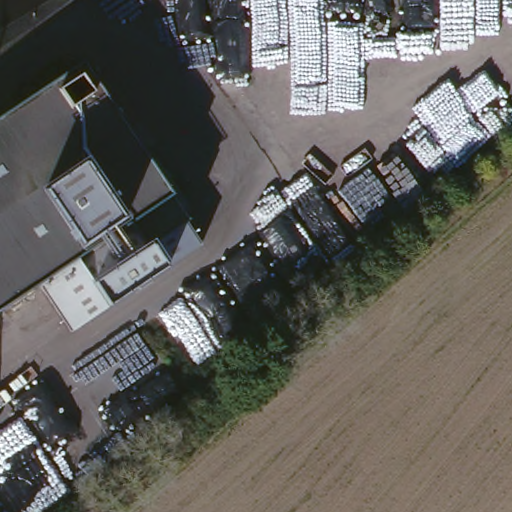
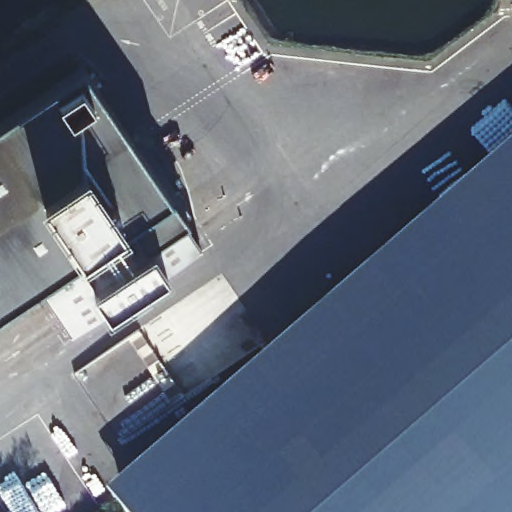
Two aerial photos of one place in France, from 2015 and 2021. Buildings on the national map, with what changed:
unchanged [(186,205),(184,206),(211,249),(76,333),(50,290),(8,316),(6,313),(0,317),(0,114),(93,56),(186,205)]
new [(512,136),(512,512),(139,512),(113,482),(512,136)]

